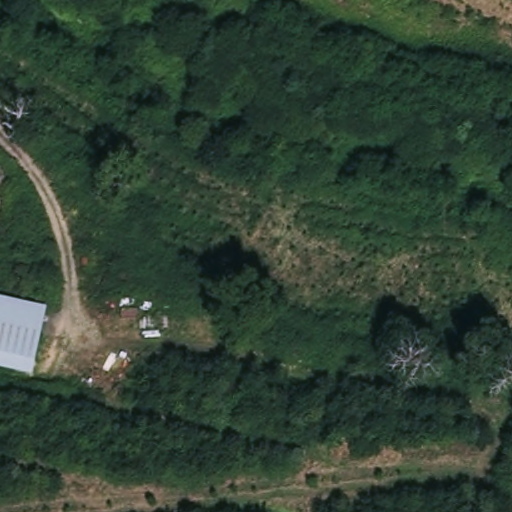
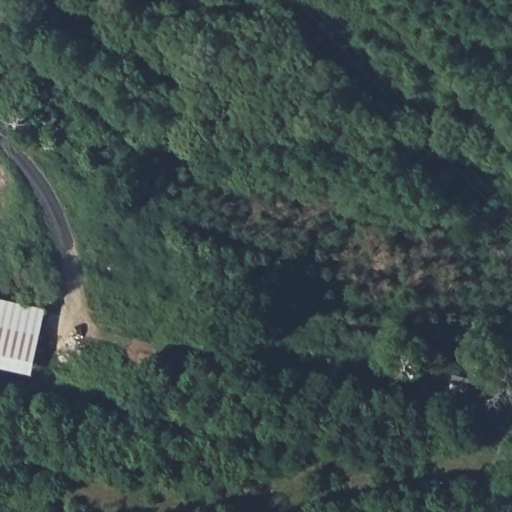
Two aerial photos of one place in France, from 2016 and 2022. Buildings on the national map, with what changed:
unchanged [(28,366),(0,358),(0,307),(41,318),(28,366)]

